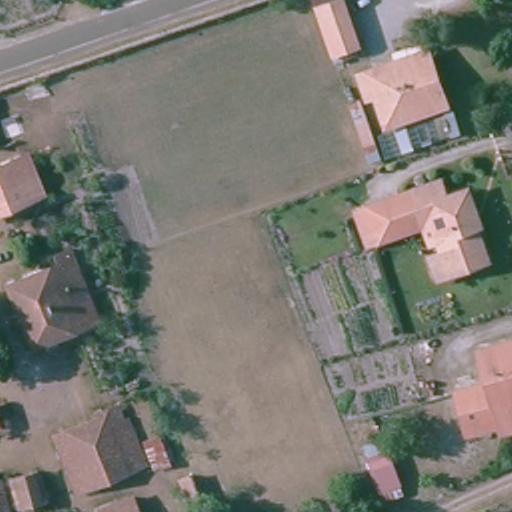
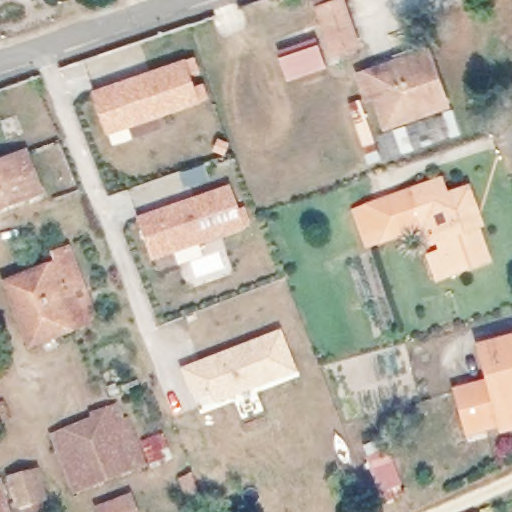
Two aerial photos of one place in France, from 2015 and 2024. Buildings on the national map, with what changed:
unchanged [(332,56),(327,42),(316,10),(341,2),(352,33),(357,47),(332,56)]
new [(327,66),(288,79),(278,51),(320,39),(327,66)]
unchanged [(380,94),(370,97),(364,74),(378,70),(402,61),(425,55),(432,52),(449,104),(440,106),(390,124),(380,94)]
new [(110,132),(95,90),(186,59),(202,102),(110,132)]
unchanged [(349,105),(359,101),(372,139),(361,141),(349,105)]
unchanged [(23,154),(40,193),(1,209),(0,207),(0,188),(14,181),(7,161),(23,154)]
unchanged [(14,181),(0,188),(0,164),(7,161),(14,181)]
unchanged [(425,250),(429,249),(420,225),(407,186),(443,174),(450,191),(466,186),(493,256),(455,270),(434,277),(425,250)]
new [(153,262),(138,218),(231,186),(246,229),(153,262)]
unchanged [(407,186),(420,225),(365,246),(352,205),(407,186)]
unchanged [(1,209),(0,209),(0,207),(1,209)]
unchanged [(86,284),(81,286),(86,301),(80,304),(86,321),(30,345),(5,281),(60,259),(56,251),(72,245),(86,284)]
new [(216,405),(210,386),(192,394),(183,370),(282,330),(299,372),(216,405)]
unchanged [(452,393),(487,382),(480,352),(512,343),(512,432),(501,435),(499,426),(465,437),(462,426),(452,393)]
unchanged [(70,458),(60,430),(96,415),(102,428),(124,419),(142,461),(71,490),(59,461),(70,458)]
unchanged [(17,512),(10,488),(36,480),(46,506),(27,512),(17,512)]
unchanged [(377,511),(368,489),(391,480),(400,502),(377,511)]
unchanged [(1,485),(7,512),(0,512),(0,485),(1,485)]

